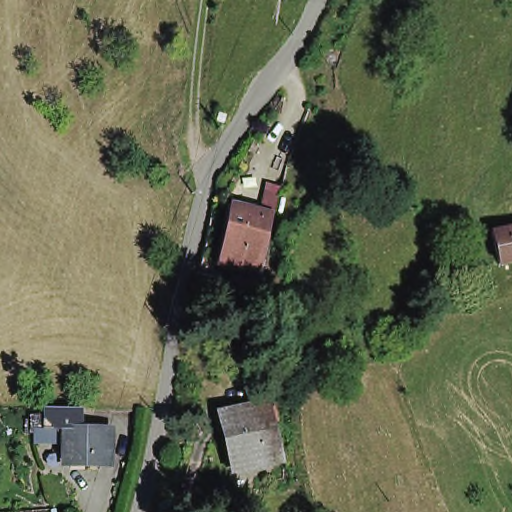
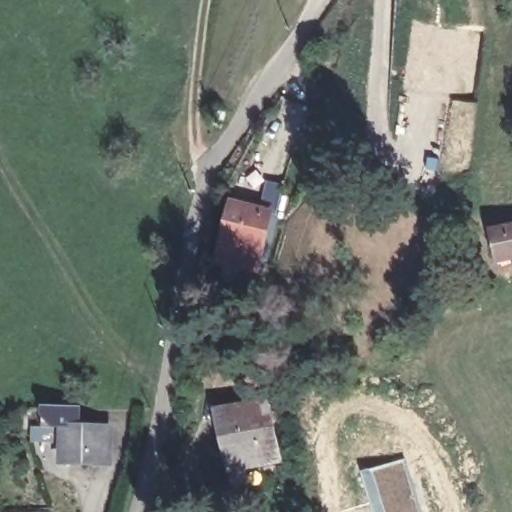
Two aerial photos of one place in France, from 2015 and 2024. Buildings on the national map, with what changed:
unchanged [(253,268),(230,263),(220,261),(231,208),(242,210),(265,216),(265,221),(271,223),(261,268),(253,266),(253,268)]
unchanged [(493,266),(485,233),(512,227),(512,262),(493,266)]
unchanged [(110,457),(100,457),(100,470),(69,469),(70,434),(52,434),(42,433),(43,413),(43,412),(51,413),(54,413),(80,413),(80,434),(111,435),(110,457)]
unchanged [(218,429),(261,419),(272,471),(229,480),(227,476),(222,446),(218,429)]
new [(422,512),(372,512),(359,471),(405,456),(422,512)]

